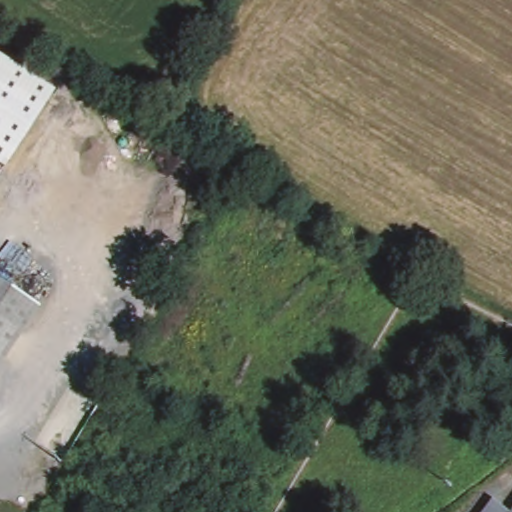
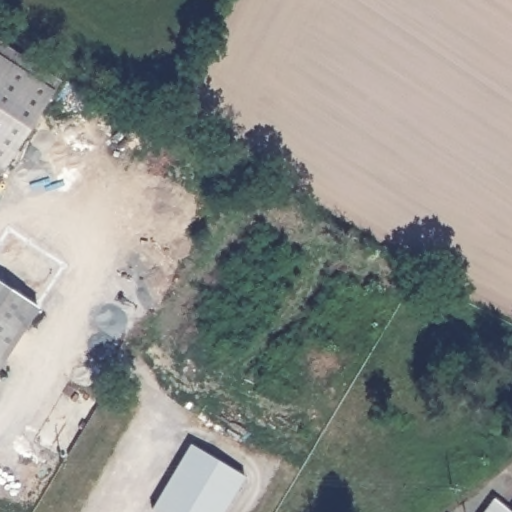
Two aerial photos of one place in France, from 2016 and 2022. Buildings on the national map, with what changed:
unchanged [(0,54),(53,89),(4,166),(0,163),(0,54)]
unchanged [(0,375),(0,283),(43,312),(0,375)]
new [(191,437),(246,471),(222,512),(161,512),(150,505),(191,437)]

